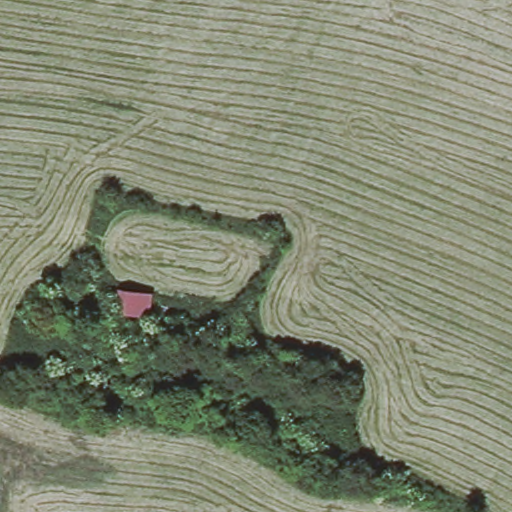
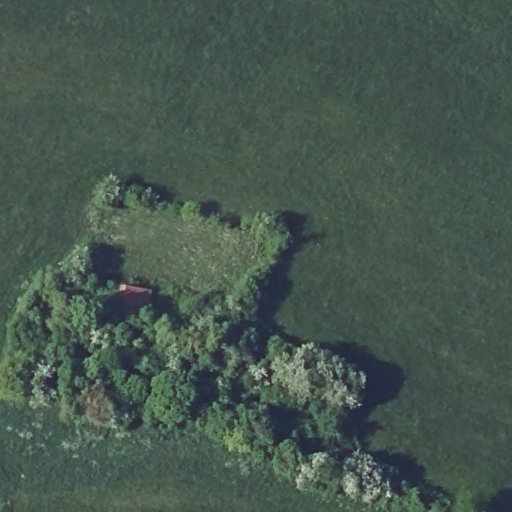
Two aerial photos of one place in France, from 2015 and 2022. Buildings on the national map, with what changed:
unchanged [(149,295),(146,315),(115,311),(117,291),(149,295)]

